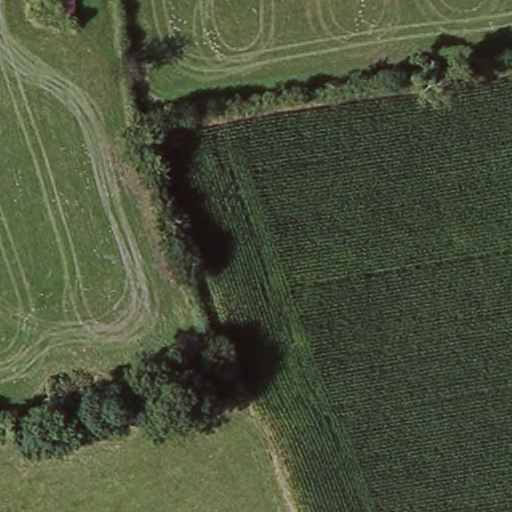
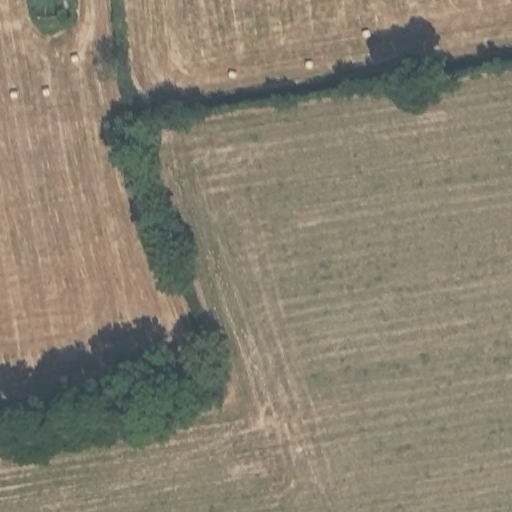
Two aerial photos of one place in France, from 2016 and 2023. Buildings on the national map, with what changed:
unchanged [(82,39),(45,37),(45,14),(82,14),(82,39)]

